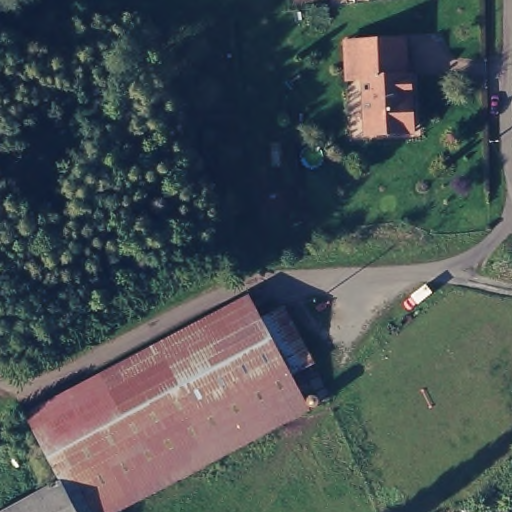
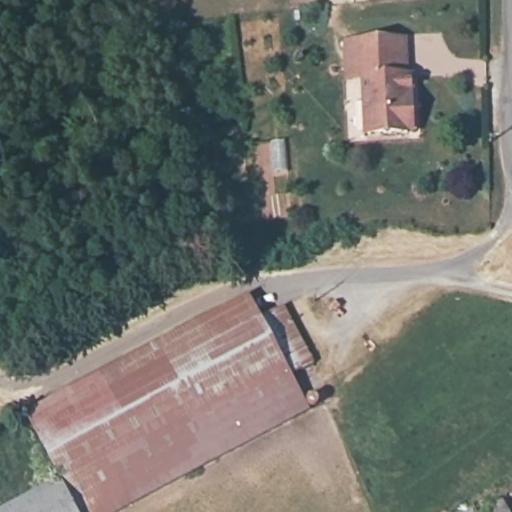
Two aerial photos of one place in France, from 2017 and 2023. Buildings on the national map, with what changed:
unchanged [(403,122),(361,124),(359,69),(355,69),(344,70),(342,33),(354,32),(399,30),(400,66),(405,66),(406,86),(408,122),(403,122)]
unchanged [(101,512),(0,512),(0,507),(56,477),(21,408),(242,292),(255,315),(279,302),(308,358),(285,370),(303,405),(101,512)]
unchanged [(479,510),(505,494),(512,510),(512,512),(456,512),(455,506),(475,497),(479,510)]

